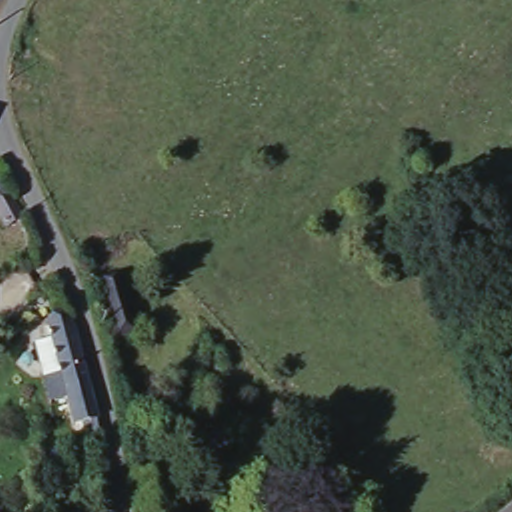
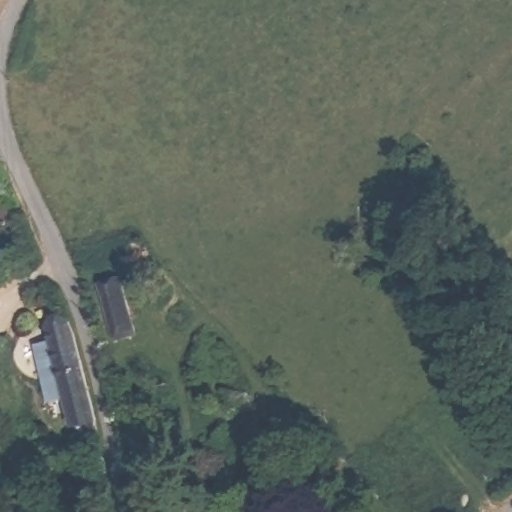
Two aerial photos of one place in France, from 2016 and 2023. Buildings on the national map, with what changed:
unchanged [(19,218),(4,225),(0,215),(0,199),(10,195),(19,218)]
unchanged [(119,272),(136,326),(119,332),(102,278),(119,272)]
unchanged [(79,340),(101,433),(84,436),(80,421),(67,408),(53,413),(33,344),(53,336),(47,323),(69,316),(79,340)]
unchanged [(153,452),(159,483),(145,486),(145,482),(141,479),(137,456),(153,452)]

